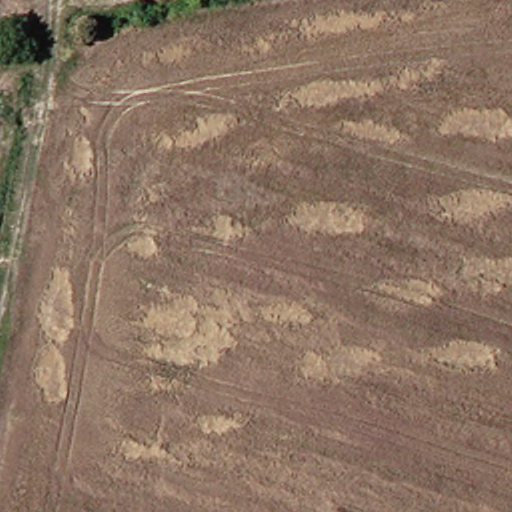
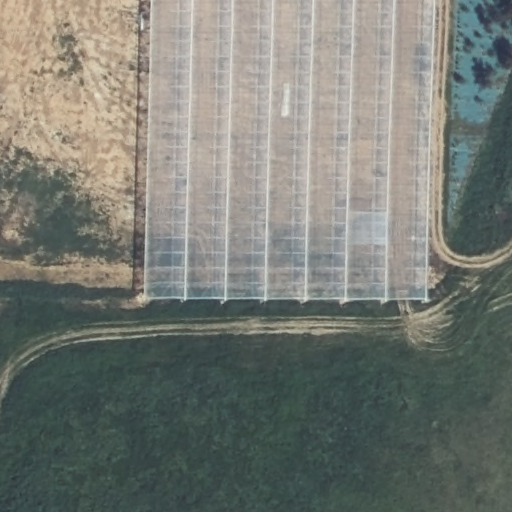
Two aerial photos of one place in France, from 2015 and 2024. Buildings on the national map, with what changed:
new [(421,302),(140,301),(140,0),(422,0),(421,302)]

